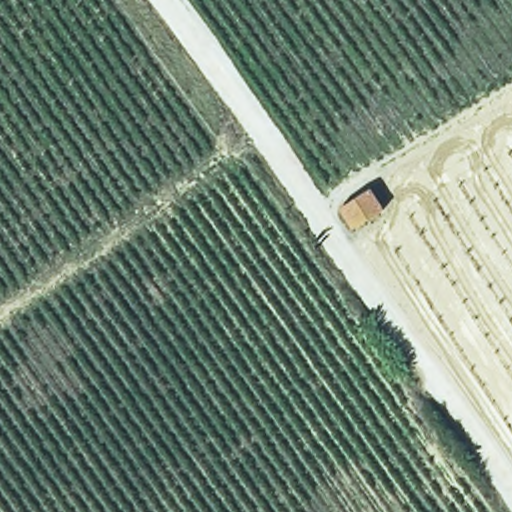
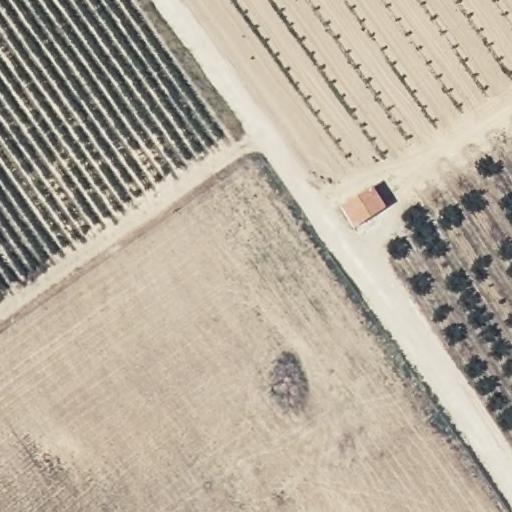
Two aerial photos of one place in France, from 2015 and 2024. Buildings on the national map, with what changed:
unchanged [(368,191),(381,210),(349,231),(337,211),(368,191)]

